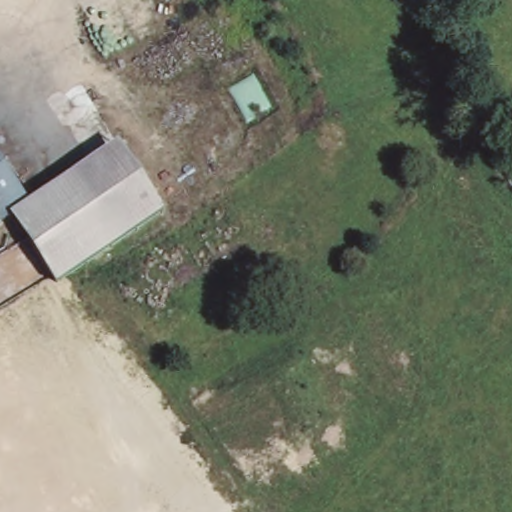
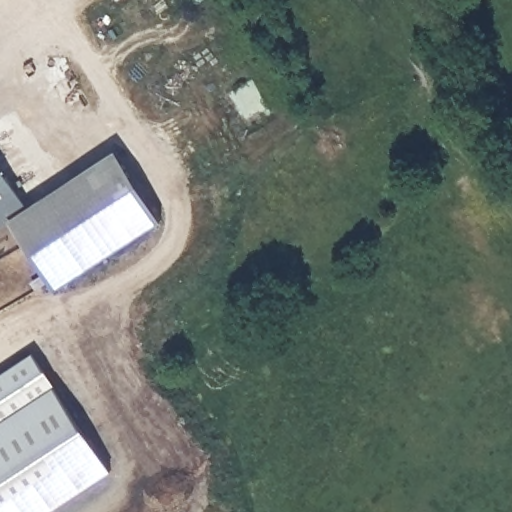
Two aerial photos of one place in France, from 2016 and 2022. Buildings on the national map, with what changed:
unchanged [(165,220),(54,293),(9,221),(32,207),(117,151),(165,220)]
unchanged [(0,201),(0,155),(20,188),(0,201)]
unchanged [(9,221),(0,227),(0,201),(20,188),(32,207),(9,221)]
new [(49,512),(0,512),(0,375),(36,352),(113,469),(49,512)]

